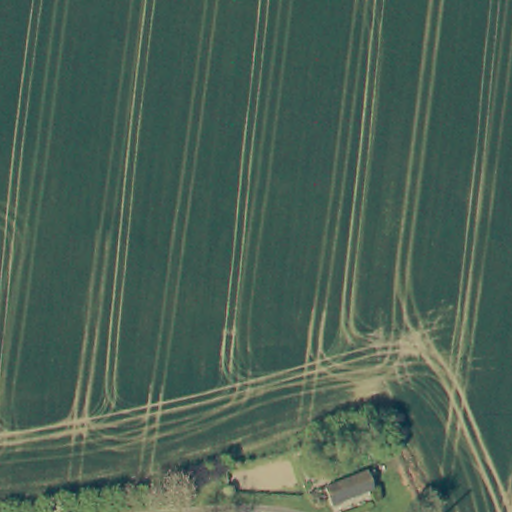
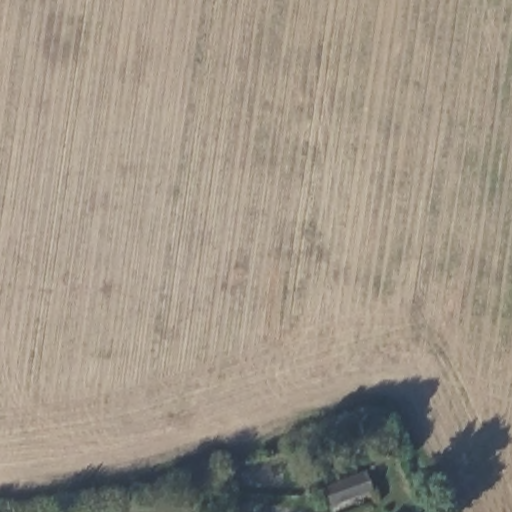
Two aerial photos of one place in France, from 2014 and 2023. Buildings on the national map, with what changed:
unchanged [(377,487),(334,505),(327,488),(369,469),(377,487)]

